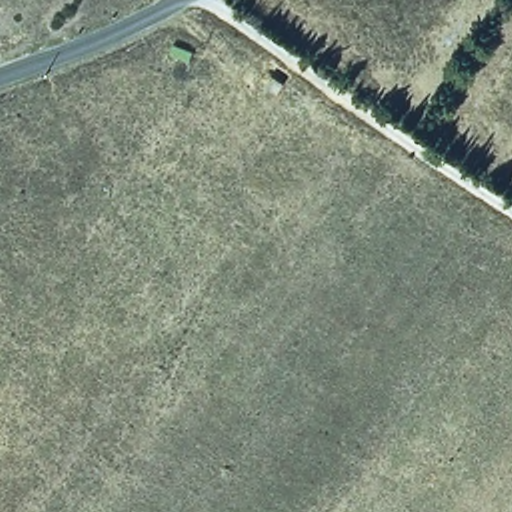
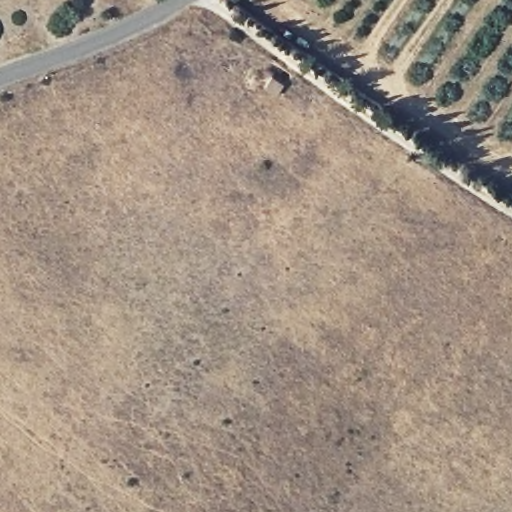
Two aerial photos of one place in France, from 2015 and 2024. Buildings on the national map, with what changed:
unchanged [(285,80),(277,91),(263,82),(270,69),(285,80)]

